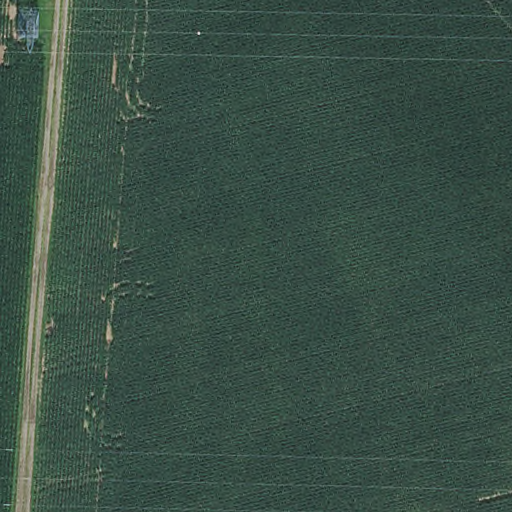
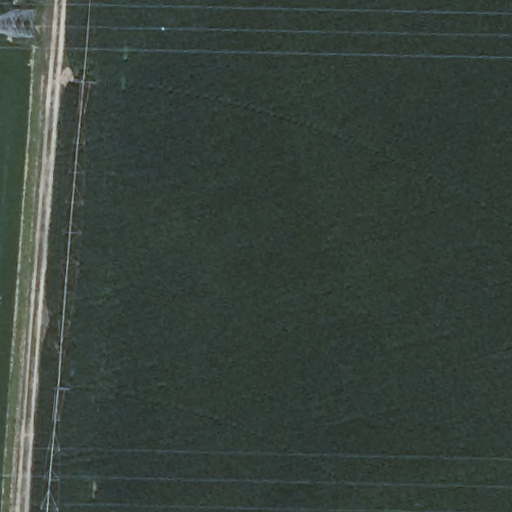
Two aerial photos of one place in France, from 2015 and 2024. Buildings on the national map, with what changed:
[]

